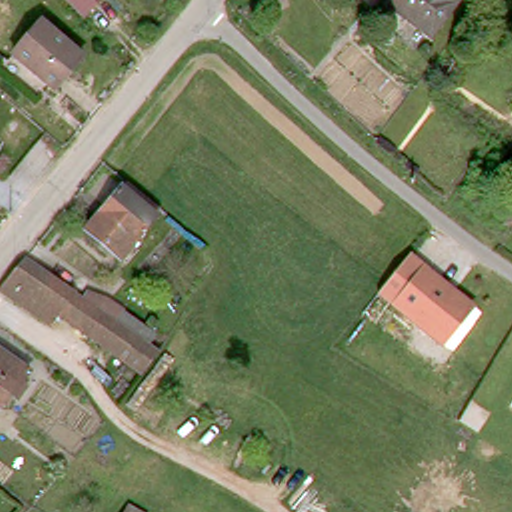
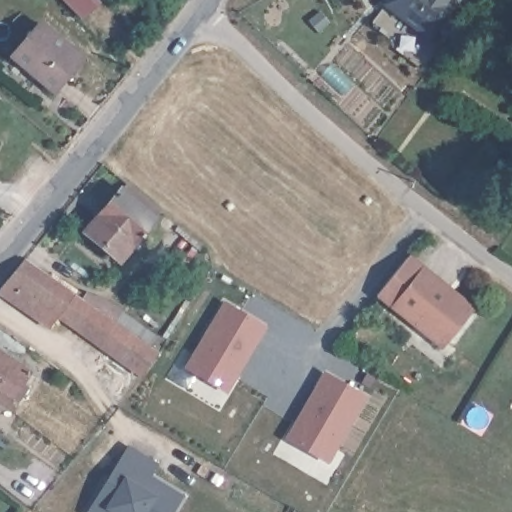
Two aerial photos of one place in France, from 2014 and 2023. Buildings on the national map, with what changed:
new [(83,19),(64,0),(84,0),(93,9),(83,19)]
unchanged [(375,9),(382,0),(455,0),(421,45),(375,9)]
unchanged [(12,58),(42,24),(85,60),(55,95),(12,58)]
unchanged [(121,263),(85,232),(128,184),(163,211),(121,263)]
unchanged [(58,317),(51,327),(0,293),(0,290),(27,258),(75,293),(58,317)]
unchanged [(378,297),(400,270),(410,258),(425,271),(422,274),(471,313),(443,348),(378,297)]
unchanged [(110,355),(58,317),(75,293),(160,353),(142,377),(110,355)]
new [(265,327),(225,391),(187,366),(224,303),(265,327)]
unchanged [(0,345),(32,367),(25,377),(30,381),(20,397),(13,392),(7,402),(2,408),(0,407),(0,345)]
new [(365,395),(327,462),(287,436),(324,372),(365,395)]
new [(151,475),(182,494),(172,512),(87,512),(128,444),(158,462),(151,475)]

